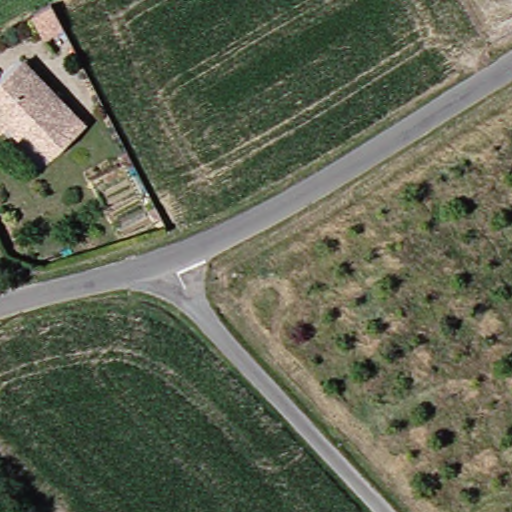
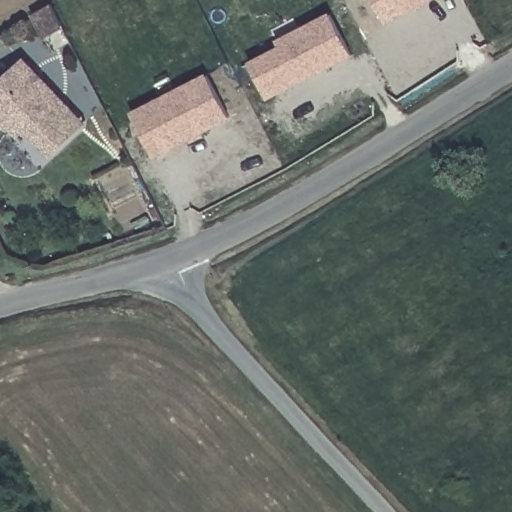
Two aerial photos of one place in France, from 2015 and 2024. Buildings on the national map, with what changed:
new [(370,0),(425,0),(420,3),(412,7),(383,23),(370,0)]
new [(48,6),(60,29),(42,39),(31,16),(48,6)]
new [(265,100),(248,66),(278,51),(275,44),(298,32),(328,16),(349,56),(301,81),(280,93),(265,100)]
unchanged [(26,135),(13,122),(5,130),(0,125),(0,89),(25,64),(87,128),(57,156),(31,131),(26,135)]
new [(152,157),(135,126),(129,115),(174,91),(204,76),(227,118),(196,134),(189,137),(152,157)]

